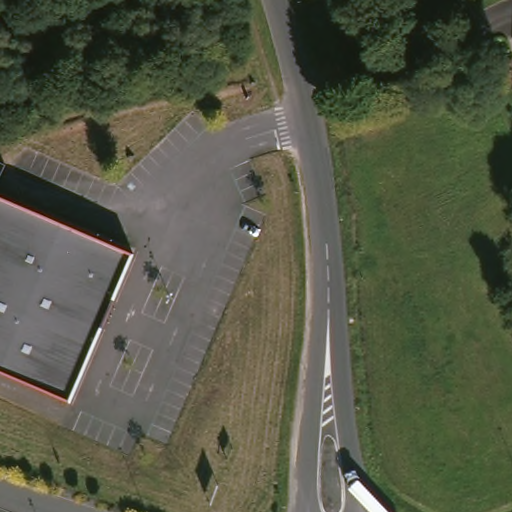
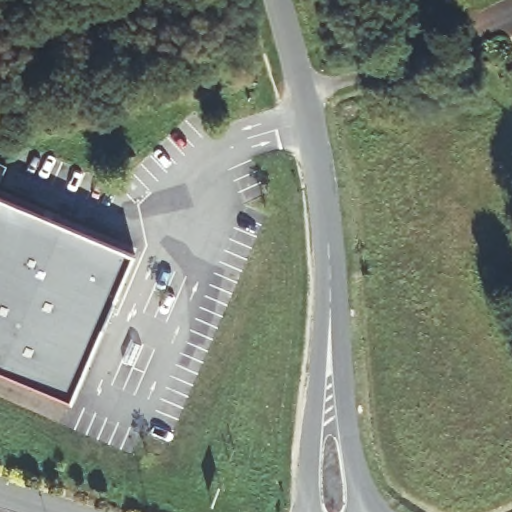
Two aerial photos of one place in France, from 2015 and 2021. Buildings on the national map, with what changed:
unchanged [(132,255),(69,403),(0,374),(0,199),(132,255)]

